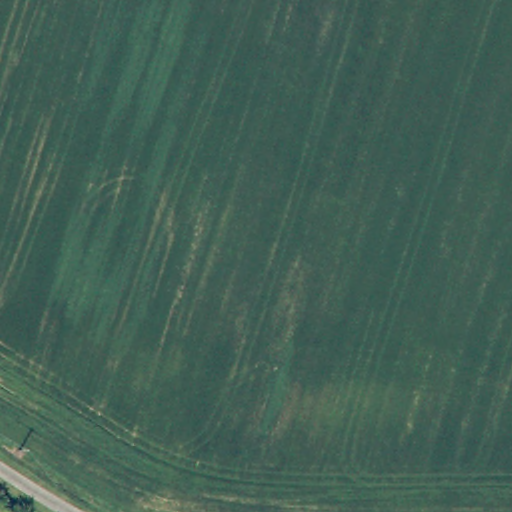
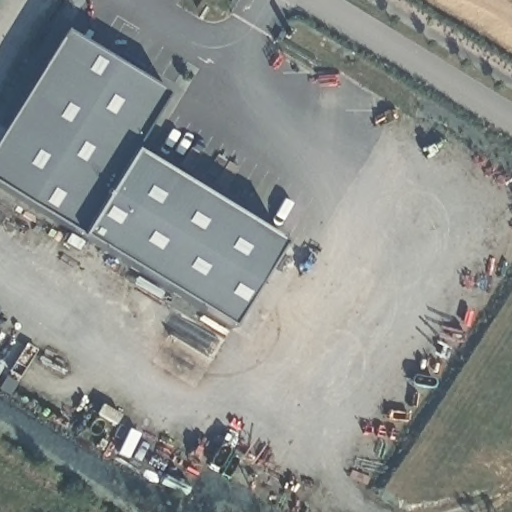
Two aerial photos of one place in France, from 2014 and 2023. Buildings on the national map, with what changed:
new [(66,33),(170,94),(134,151),(286,243),(232,327),(84,238),(0,186),(0,140),(66,33)]

